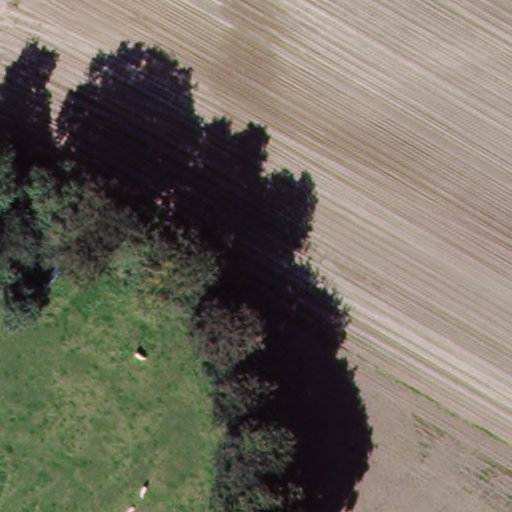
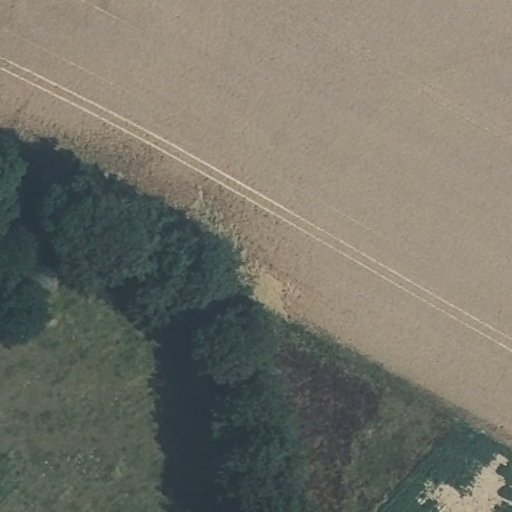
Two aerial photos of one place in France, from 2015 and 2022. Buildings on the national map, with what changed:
unchanged [(15,235),(0,256),(0,225),(15,235)]

